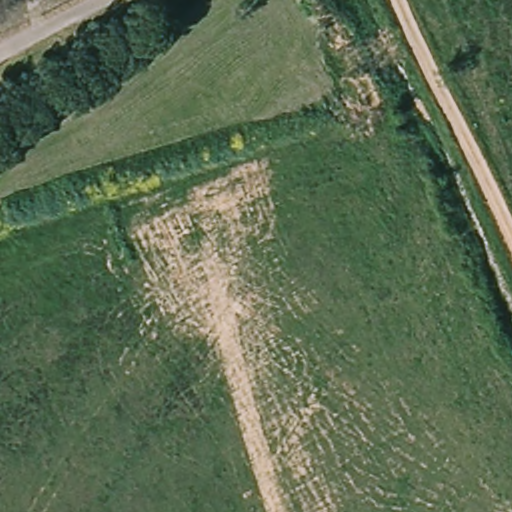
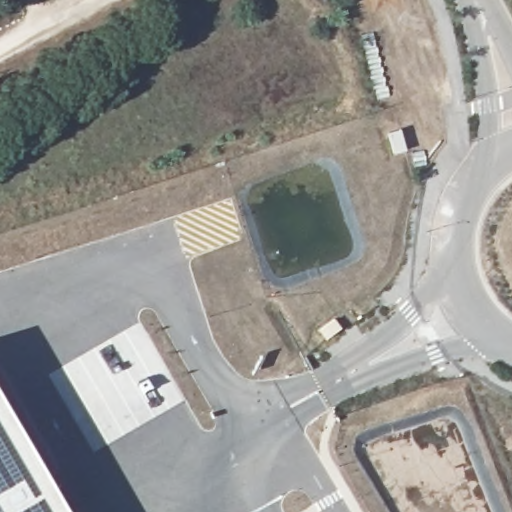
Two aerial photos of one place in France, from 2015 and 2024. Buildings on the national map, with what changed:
new [(66,512),(0,512),(0,399),(66,512)]

